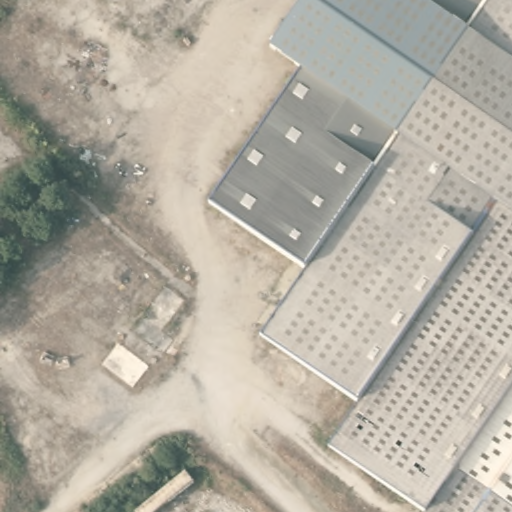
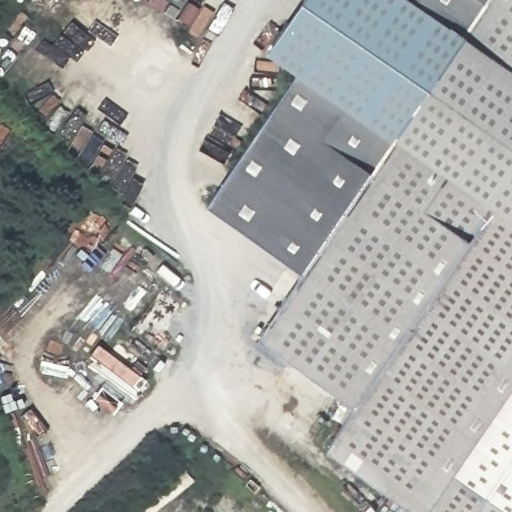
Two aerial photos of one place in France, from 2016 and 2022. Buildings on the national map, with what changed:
unchanged [(494,198),(353,401),(254,332),(301,263),(206,199),(293,71),(265,49),(296,0),(512,0),(512,211),(494,198)]
unchanged [(494,198),(512,211),(512,512),(419,512),(420,511),(323,444),(353,401),(494,198)]

